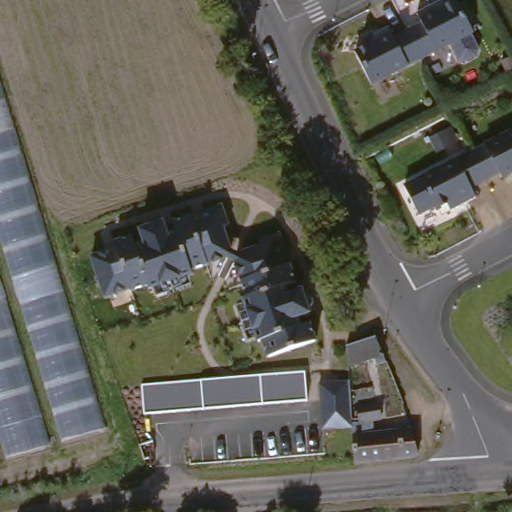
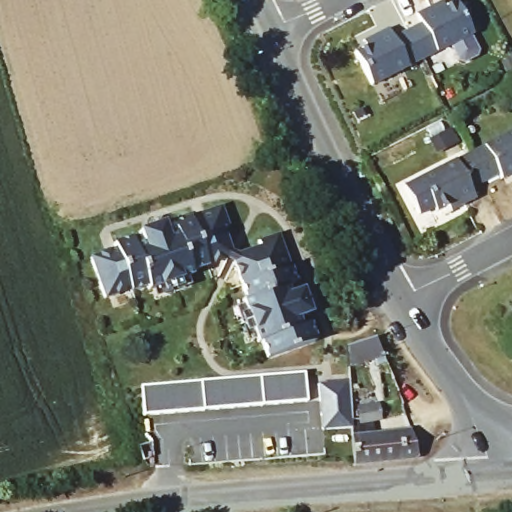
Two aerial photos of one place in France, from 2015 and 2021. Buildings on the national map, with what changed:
unchanged [(408,36),(406,33),(420,25),(415,15),(440,3),(443,9),(454,3),(471,35),(421,61),(408,36)]
unchanged [(369,87),(353,54),(364,49),(361,42),(386,30),(391,40),(406,33),(408,36),(421,61),(369,87)]
demolished [(0,57),(107,431),(0,466),(0,57)]
unchanged [(486,173),(474,150),(512,131),(512,172),(504,176),(502,171),(488,178),(486,173)]
unchanged [(474,185),(479,195),(454,208),(451,202),(439,208),(423,176),(474,150),(486,173),(488,178),(474,185)]
unchanged [(191,271),(194,277),(148,288),(146,285),(103,300),(88,255),(114,247),(114,240),(138,229),(166,224),(170,220),(219,208),(227,227),(221,230),(231,257),(191,271)]
unchanged [(259,248),(259,240),(278,236),(294,281),(299,296),(306,314),(314,341),(264,358),(259,339),(250,342),(236,293),(242,292),(231,257),(259,248)]
unchanged [(347,345),(376,336),(385,362),(377,365),(375,358),(348,366),(347,345)]
unchanged [(141,384),(304,372),(306,401),(143,414),(141,384)]
unchanged [(354,424),(346,425),(346,430),(321,429),(318,383),(348,381),(351,411),(354,424)]
unchanged [(406,434),(413,460),(409,463),(349,469),(349,465),(346,425),(354,424),(351,411),(373,408),(376,424),(368,426),(369,437),(406,434)]

